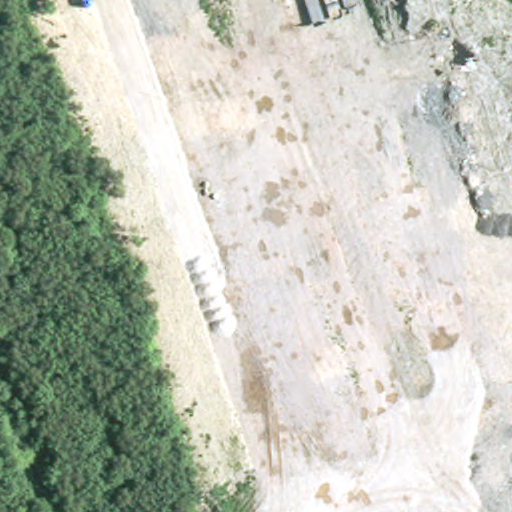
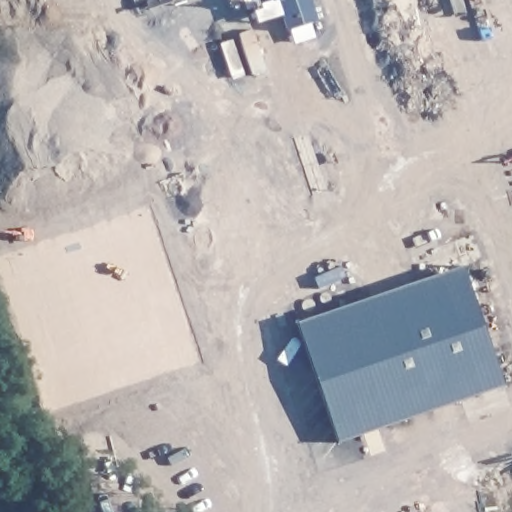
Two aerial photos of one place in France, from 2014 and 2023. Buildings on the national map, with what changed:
new [(318,21),(286,31),(276,0),(311,0),(318,21)]
new [(463,266),(504,386),(338,441),(296,320),(463,266)]

